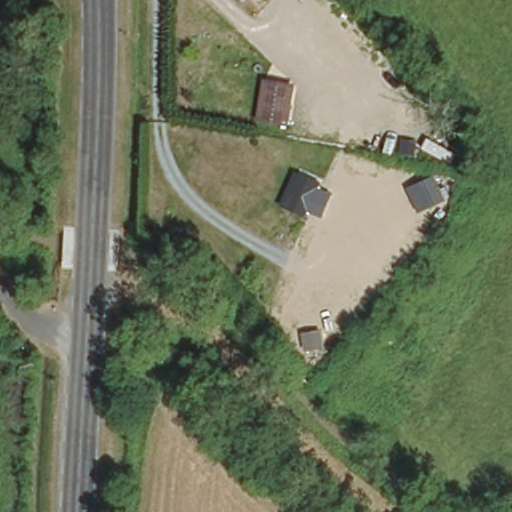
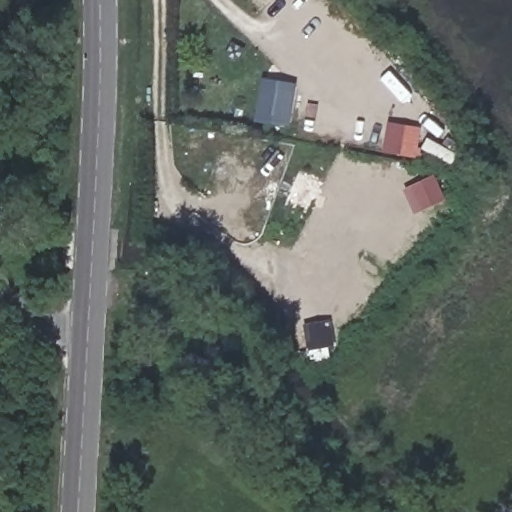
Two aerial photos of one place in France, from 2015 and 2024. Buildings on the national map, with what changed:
unchanged [(295,83),(287,131),(252,125),(259,79),(295,83)]
new [(419,156),(383,151),(388,122),(422,127),(419,156)]
unchanged [(327,182),(307,222),(274,207),(292,167),(327,182)]

